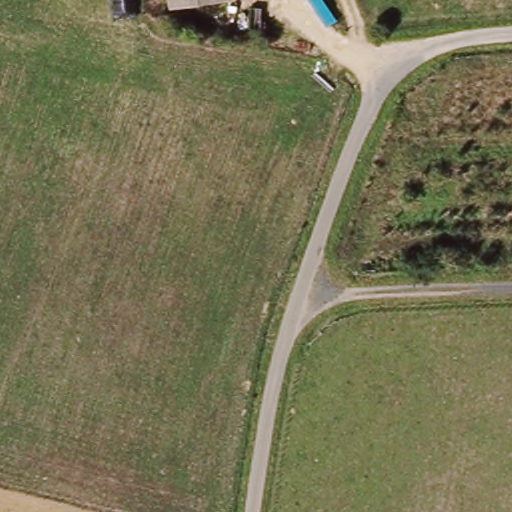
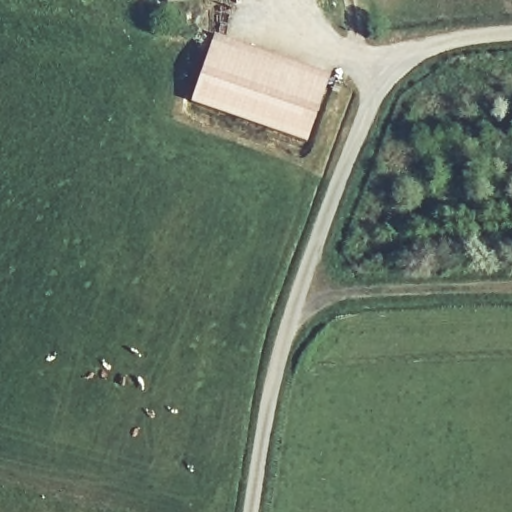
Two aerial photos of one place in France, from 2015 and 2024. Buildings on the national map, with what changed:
unchanged [(166,0),(174,0),(167,1),(166,0)]
new [(331,77),(307,144),(190,102),(214,35),(331,77)]

